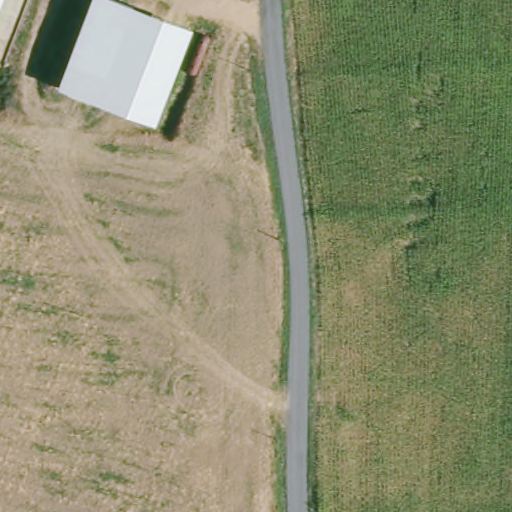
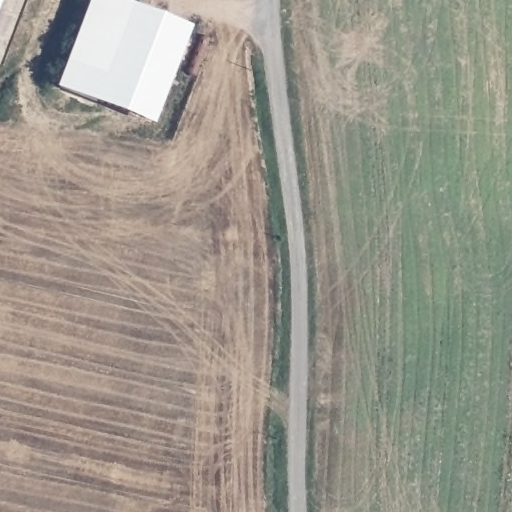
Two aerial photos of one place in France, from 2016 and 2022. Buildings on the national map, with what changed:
unchanged [(0,0),(2,0),(0,6),(0,0)]
unchanged [(93,0),(111,0),(134,9),(190,29),(165,96),(155,124),(60,88),(66,72),(93,0)]

